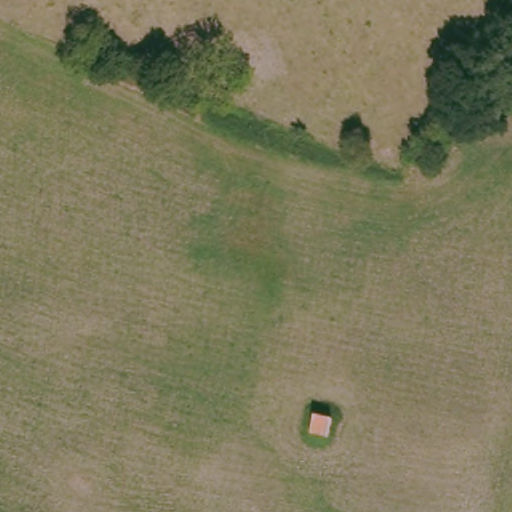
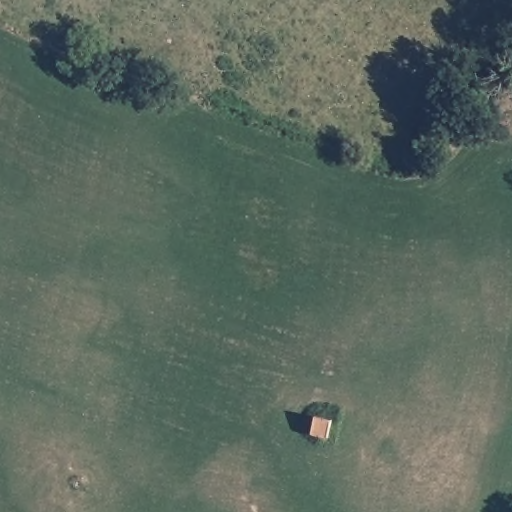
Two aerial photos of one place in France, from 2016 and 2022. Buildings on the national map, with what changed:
unchanged [(307,432),(312,402),(335,410),(327,437),(307,432)]

